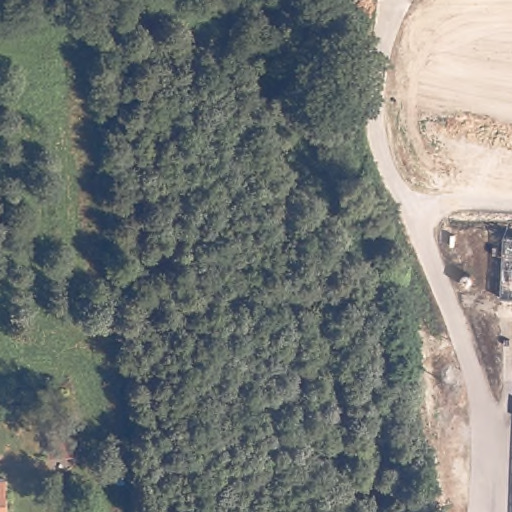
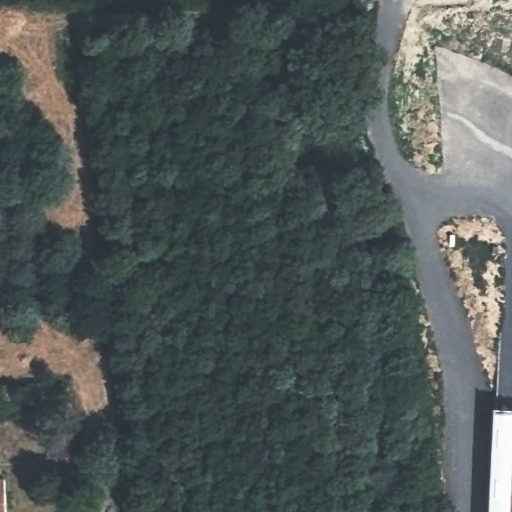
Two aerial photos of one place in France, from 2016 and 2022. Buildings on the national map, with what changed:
new [(495,406),(512,408),(512,512),(490,512),(495,406)]
unchanged [(5,479),(7,512),(0,512),(0,479),(5,479)]

